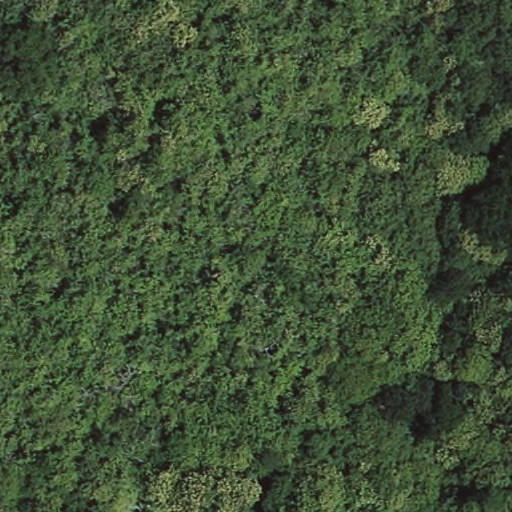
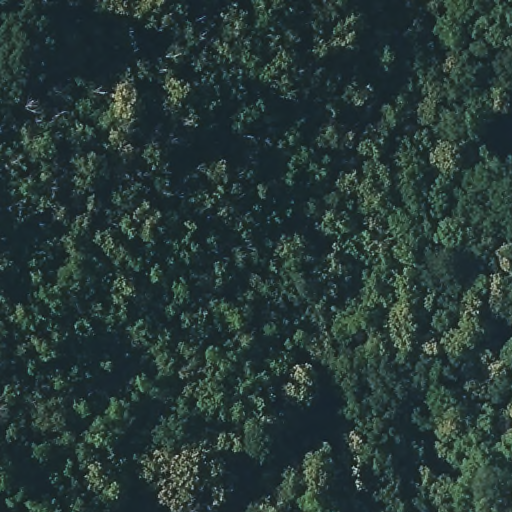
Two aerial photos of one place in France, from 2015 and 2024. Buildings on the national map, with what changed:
unchanged [(212,80),(171,79),(171,47),(212,48),(212,80)]

